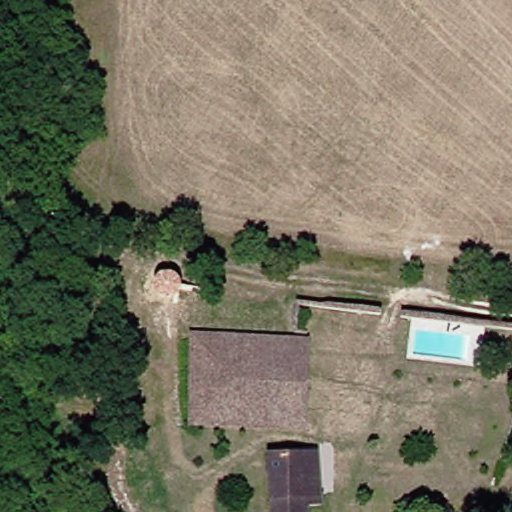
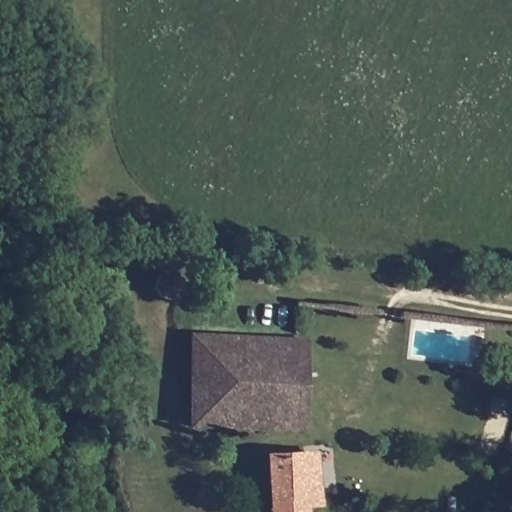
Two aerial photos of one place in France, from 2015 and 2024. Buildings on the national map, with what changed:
unchanged [(159,292),(152,284),(154,274),(159,268),(168,263),(179,268),(184,276),(183,286),(178,293),(171,295),(159,292)]
unchanged [(198,426),(199,334),(316,337),(317,431),(198,426)]
unchanged [(280,455),(333,452),(332,511),(322,511),(321,512),(278,512),(280,455)]

